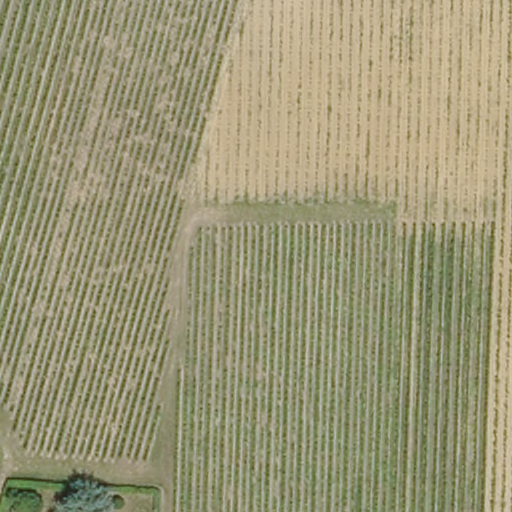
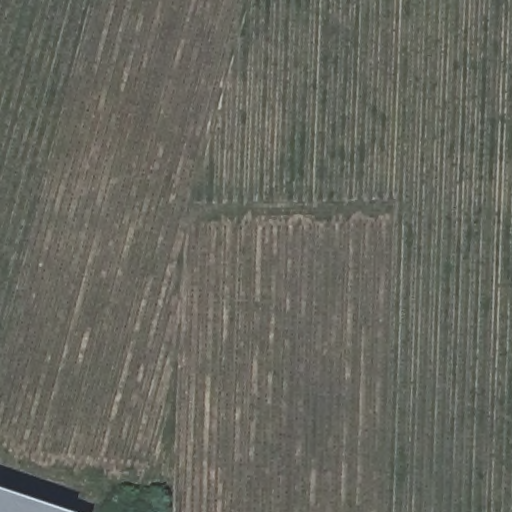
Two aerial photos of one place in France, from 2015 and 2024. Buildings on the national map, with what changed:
new [(65,510),(72,512),(0,512),(0,488),(65,510)]

